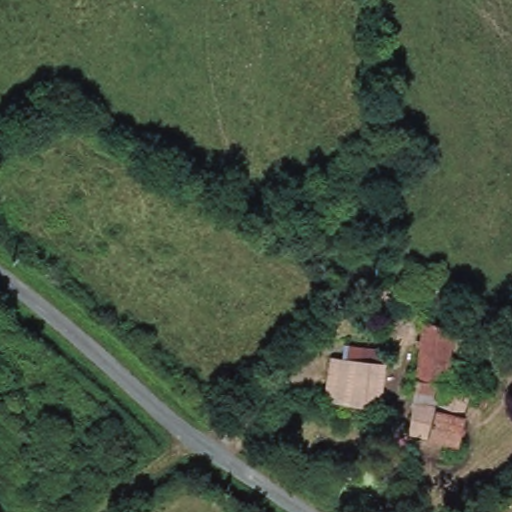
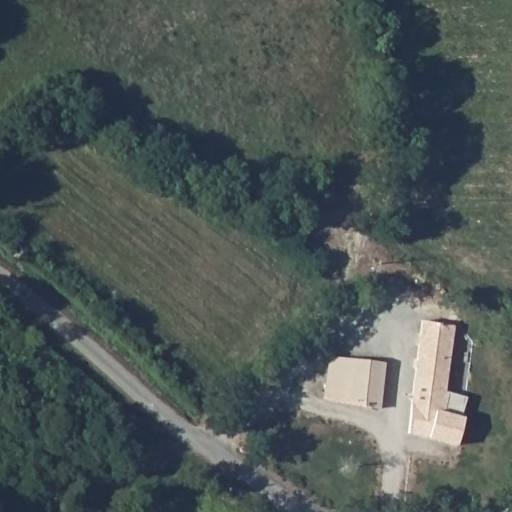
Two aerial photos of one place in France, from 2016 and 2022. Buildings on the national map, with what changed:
unchanged [(446,392),(444,392),(444,395),(442,412),(446,396),(466,404),(461,422),(464,423),(457,451),(409,439),(422,327),(453,332),(450,362),(446,392)]
unchanged [(379,410),(325,400),(331,358),(384,364),(379,410)]
unchanged [(483,407),(475,405),(480,392),(488,397),(483,407)]

